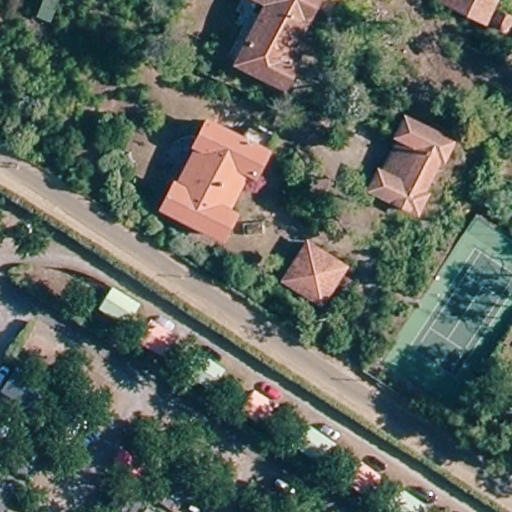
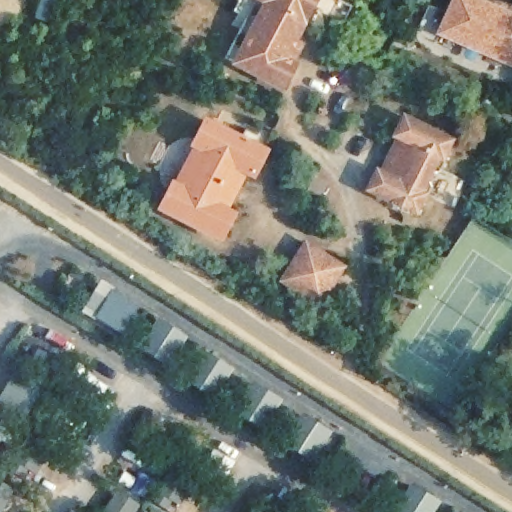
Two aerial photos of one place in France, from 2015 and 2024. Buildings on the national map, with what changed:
unchanged [(298,50),(287,72),(293,75),(283,94),(234,69),(265,7),(251,0),(312,0),(289,45),(298,50)]
demolished [(436,0),(476,0),(470,15),(436,0)]
new [(436,34),(450,0),(483,0),(512,13),(512,67),(436,34)]
demolished [(490,24),(478,19),(484,8),(496,12),(490,24)]
unchanged [(225,206),(212,231),(152,201),(162,177),(183,137),(196,114),(255,144),(245,167),(240,165),(220,204),(225,206)]
unchanged [(402,117),(448,140),(438,159),(433,157),(417,192),(421,195),(412,212),(366,189),(375,171),(381,173),(397,139),(393,137),(402,117)]
unchanged [(282,281),(303,246),(326,261),(339,269),(327,287),(317,304),(282,281)]

